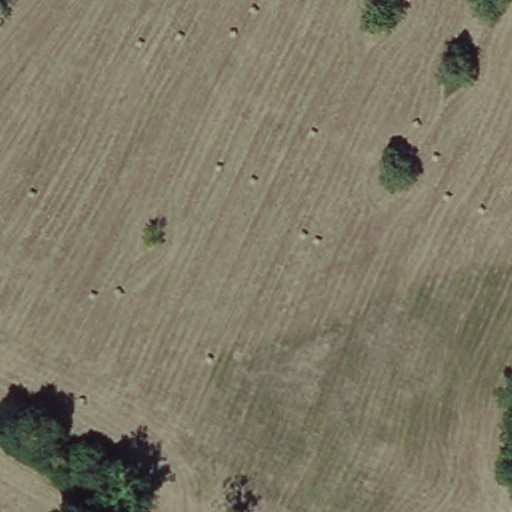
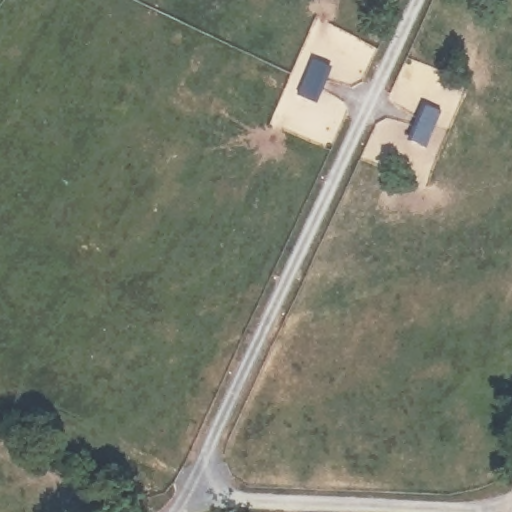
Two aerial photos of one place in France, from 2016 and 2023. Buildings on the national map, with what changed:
[]

